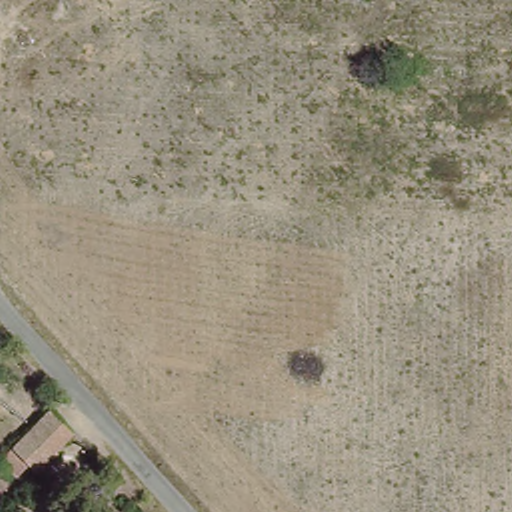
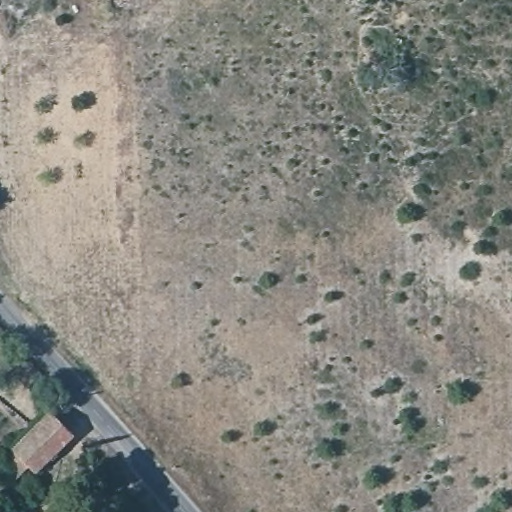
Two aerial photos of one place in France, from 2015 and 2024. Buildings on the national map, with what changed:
unchanged [(4,2),(0,3),(0,0),(4,0),(4,2)]
unchanged [(19,463),(9,475),(0,468),(0,457),(43,413),(66,435),(30,472),(19,463)]

